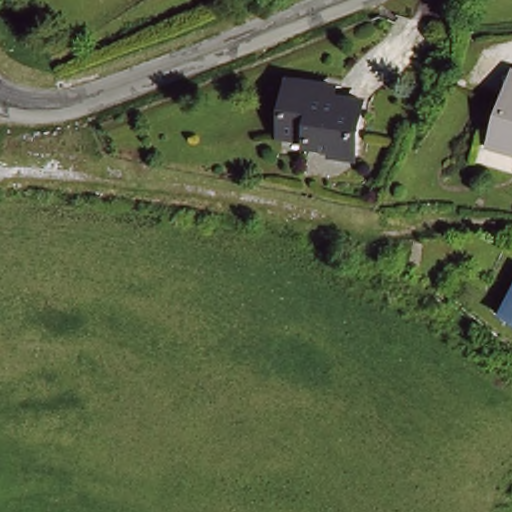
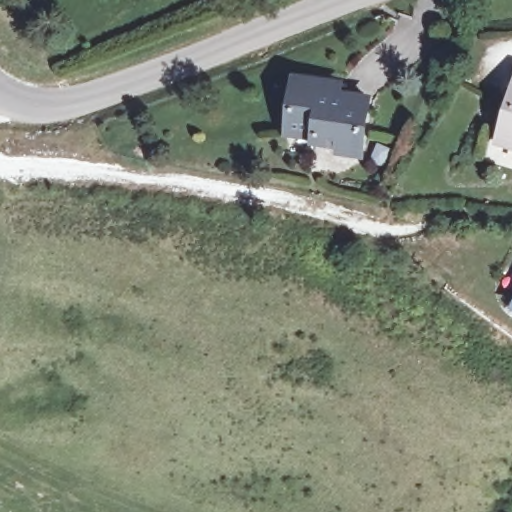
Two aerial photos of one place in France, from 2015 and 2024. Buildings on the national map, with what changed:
unchanged [(330,83),(330,94),(369,99),(358,153),(335,150),(337,140),(289,134),(297,79),(330,83)]
unchanged [(511,128),(512,128),(512,145),(506,143),(511,128)]

